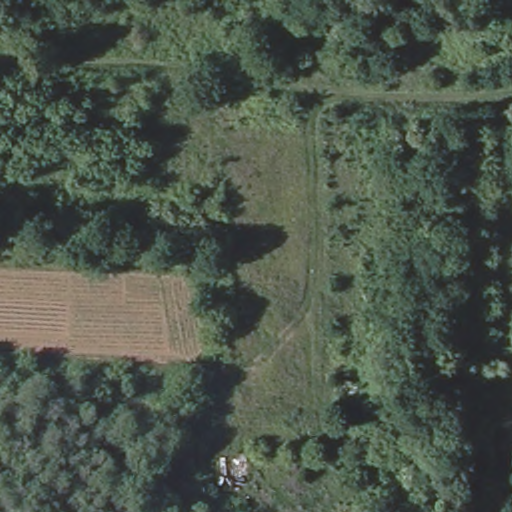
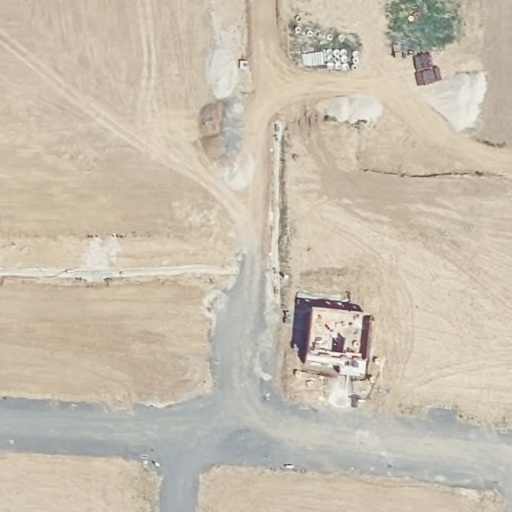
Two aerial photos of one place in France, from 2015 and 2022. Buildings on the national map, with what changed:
new [(372,316),(369,362),(307,356),(312,308),(372,316)]
unchanged [(248,490),(222,491),(220,460),(247,460),(248,490)]

